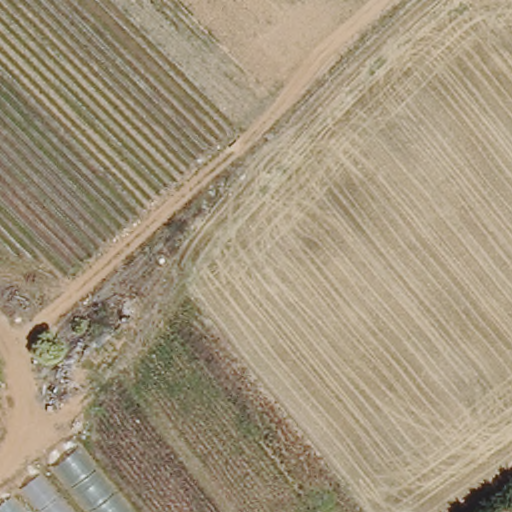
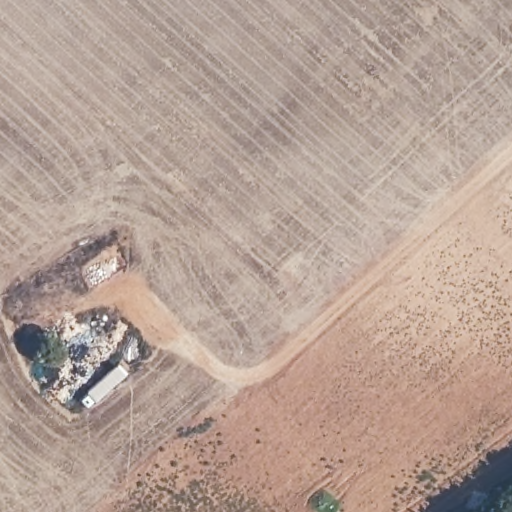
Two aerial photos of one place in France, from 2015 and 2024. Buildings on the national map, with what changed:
demolished [(139,512),(0,512),(0,491),(71,435),(139,512)]

